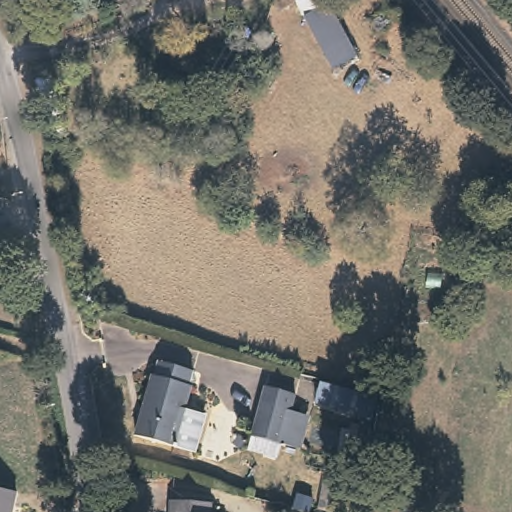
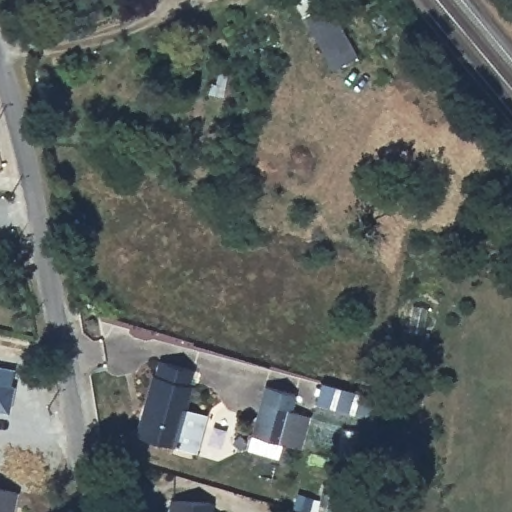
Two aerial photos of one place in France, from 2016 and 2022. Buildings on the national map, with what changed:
unchanged [(333,68),(294,0),(324,0),(356,54),(333,68)]
unchanged [(149,372),(155,374),(158,362),(191,371),(187,386),(191,387),(186,410),(205,414),(194,451),(137,436),(132,434),(140,408),(149,372)]
new [(13,370),(11,386),(14,387),(9,413),(0,411),(0,368),(13,370)]
unchanged [(298,447),(283,443),(251,434),(264,382),(297,391),(292,407),(308,412),(298,447)]
unchanged [(18,491),(14,512),(0,512),(0,487),(18,491)]
unchanged [(207,501),(207,512),(170,512),(171,499),(207,501)]

